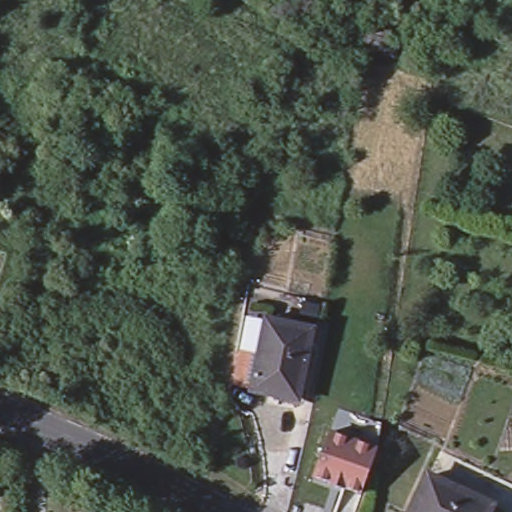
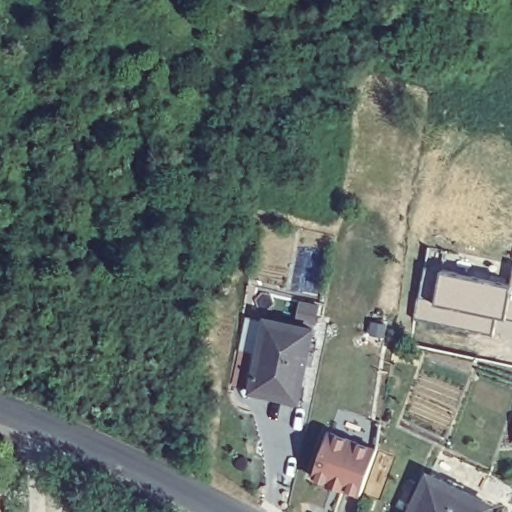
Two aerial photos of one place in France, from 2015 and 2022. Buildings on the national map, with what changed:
unchanged [(397,65),(359,56),(368,21),(394,28),(389,48),(401,50),(397,65)]
new [(509,304),(496,301),(493,313),(496,314),(492,334),(417,318),(419,299),(437,302),(443,272),(512,286),(512,318),(507,317),(509,304)]
unchanged [(268,320),(314,330),(298,403),(251,391),(268,320)]
unchanged [(314,473),(331,429),(376,444),(374,449),(361,492),(314,473)]
unchanged [(491,509),(489,512),(412,512),(429,478),(491,509)]

